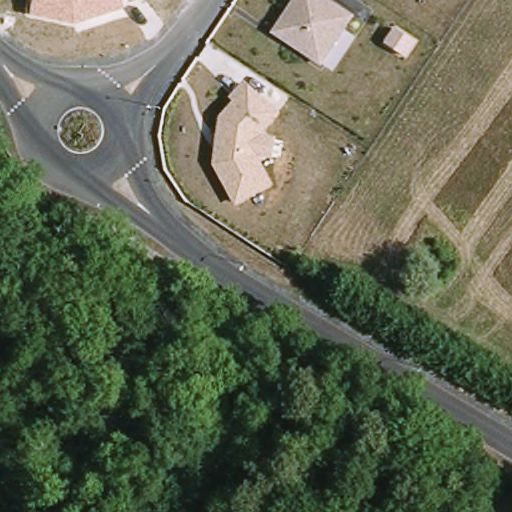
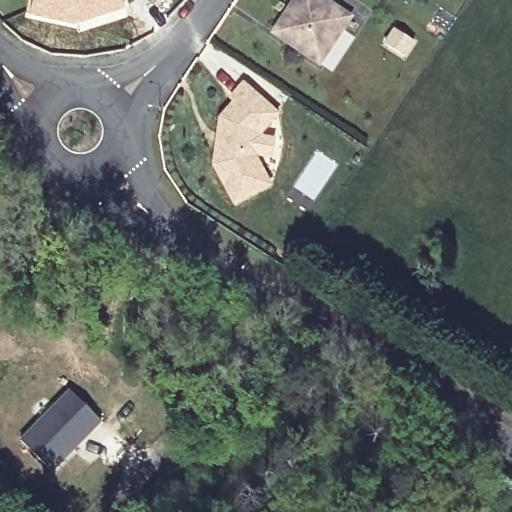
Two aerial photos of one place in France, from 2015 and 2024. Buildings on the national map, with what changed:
unchanged [(75,25),(30,16),(35,0),(123,0),(125,8),(75,25)]
unchanged [(332,0),(355,15),(322,64),(272,32),(293,0),(332,0)]
unchanged [(211,161),(216,117),(233,100),(228,97),(244,80),(280,110),(262,132),(277,136),(273,156),(257,155),(273,183),(233,202),(211,161)]
new [(69,388),(103,421),(52,472),(20,438),(69,388)]

